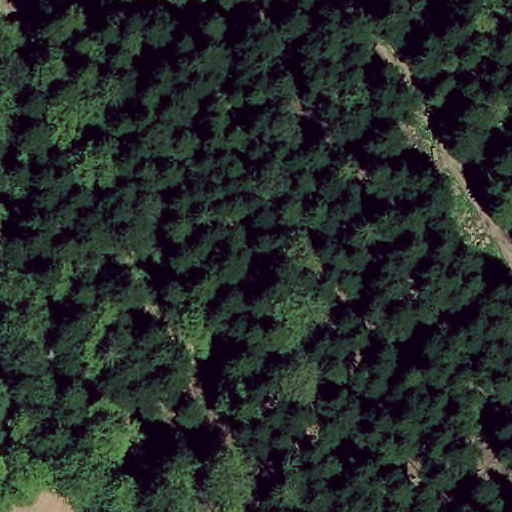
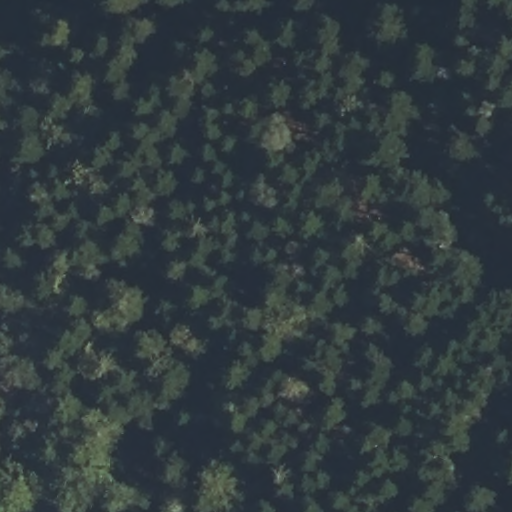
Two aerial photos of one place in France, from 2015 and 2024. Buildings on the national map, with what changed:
[]

